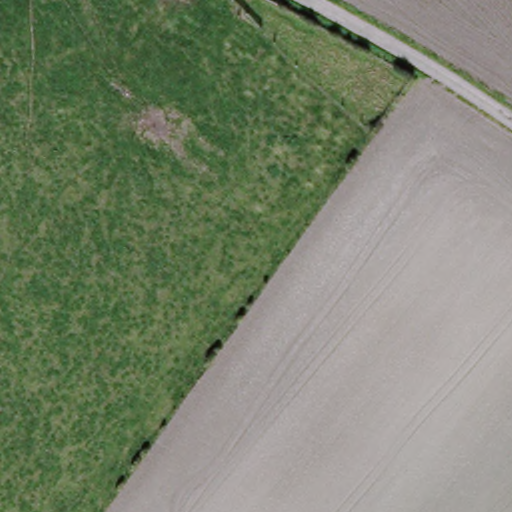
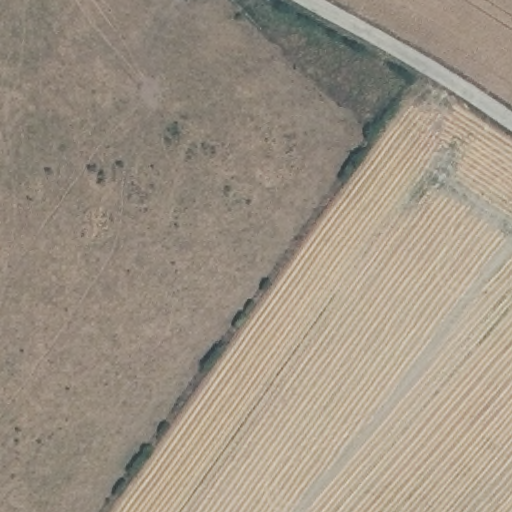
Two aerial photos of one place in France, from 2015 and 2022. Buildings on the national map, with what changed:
[]

